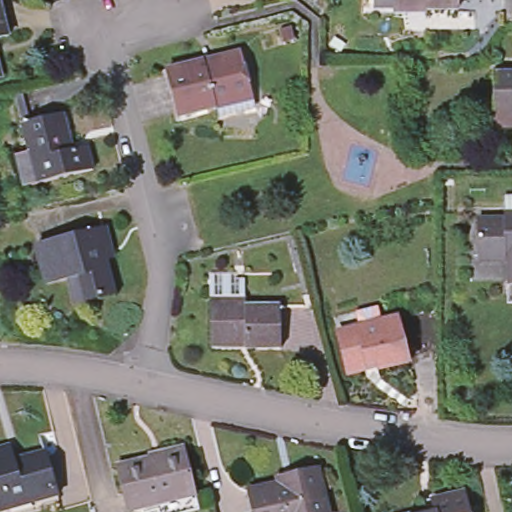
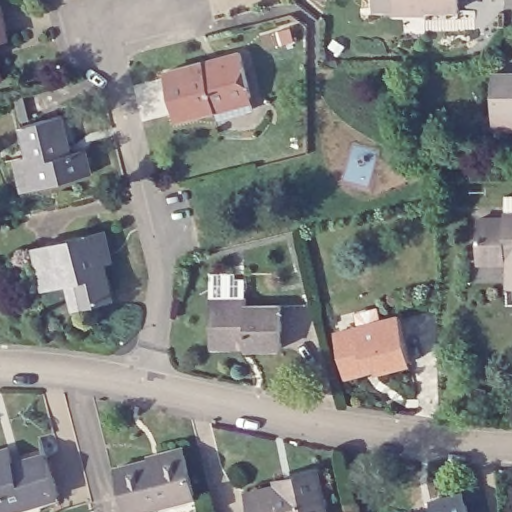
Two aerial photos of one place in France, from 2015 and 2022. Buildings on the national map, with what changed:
unchanged [(394,5),(374,4),(374,0),(458,0),(458,6),(422,6),(422,10),(394,10),(394,5)]
unchanged [(0,31),(0,19),(3,30),(0,31)]
unchanged [(214,113),(212,105),(174,114),(163,67),(200,58),(201,62),(218,58),(216,55),(236,50),(246,92),(249,105),(214,113)]
unchanged [(490,126),(490,112),(491,69),(512,69),(512,125),(490,126)]
unchanged [(25,147),(19,119),(60,110),(68,145),(83,142),(88,166),(33,179),(22,182),(14,150),(25,147)]
unchanged [(499,280),(499,258),(473,258),(471,217),(498,215),(498,210),(498,193),(512,193),(512,280),(499,280)]
unchanged [(65,275),(41,280),(34,241),(103,225),(110,255),(103,256),(110,290),(83,296),(71,298),(65,275)]
unchanged [(247,340),(213,338),(216,295),(249,297),(249,303),(284,305),(281,348),(246,347),(247,340)]
unchanged [(404,360),(373,367),(371,361),(363,363),(361,368),(341,372),(334,335),(331,328),(351,323),(393,314),(404,360)]
unchanged [(156,510),(152,496),(123,502),(113,459),(145,451),(144,446),(179,437),(181,445),(191,486),(194,500),(156,510)]
unchanged [(30,496),(0,504),(0,447),(6,445),(12,463),(18,462),(20,457),(23,456),(29,458),(43,454),(55,495),(31,502),(30,496)]
unchanged [(273,476),(271,470),(286,466),(309,461),(323,510),(323,512),(250,512),(243,483),(273,476)]
unchanged [(431,501),(428,491),(459,482),(467,512),(388,512),(398,510),(431,501)]

